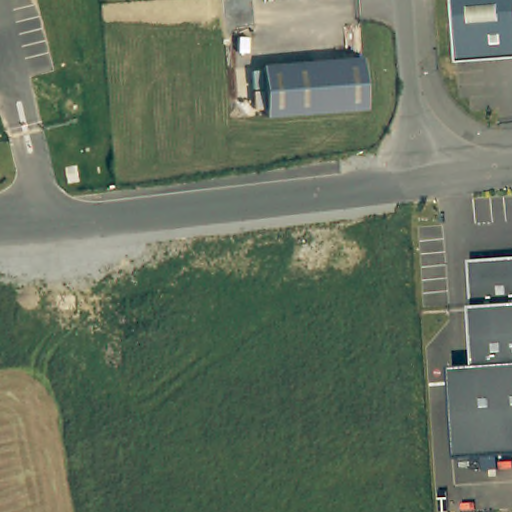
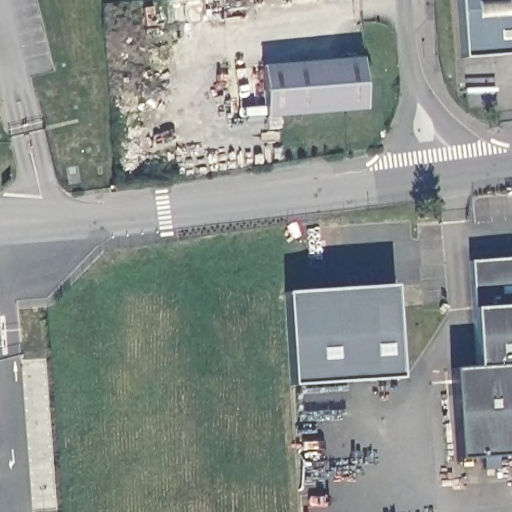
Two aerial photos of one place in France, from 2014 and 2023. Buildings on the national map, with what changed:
unchanged [(512,0),(512,56),(461,60),(456,0),(512,0)]
unchanged [(362,59),(366,109),(266,116),(262,66),(362,59)]
unchanged [(502,455),(500,470),(484,470),(487,456),(458,459),(454,370),(477,369),(473,310),(470,262),(512,259),(512,455),(502,455)]
new [(287,292),(393,285),(400,377),(293,385),(287,292)]

